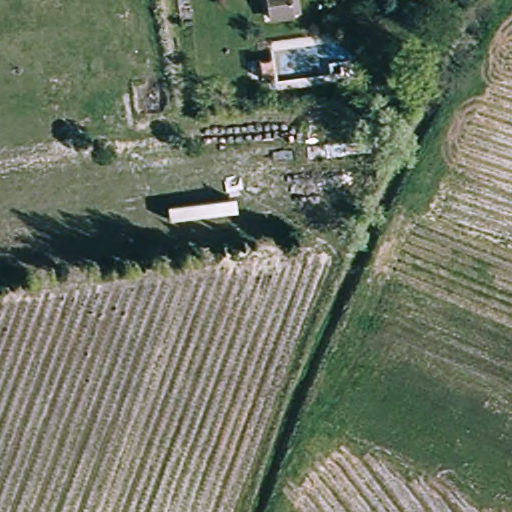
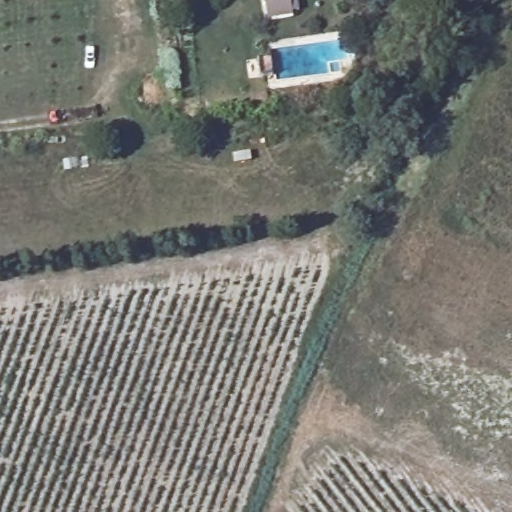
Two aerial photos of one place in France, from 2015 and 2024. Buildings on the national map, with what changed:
unchanged [(268,20),(265,0),(290,0),(293,16),(268,20)]
unchanged [(273,75),(261,76),(258,59),(270,58),(273,75)]

